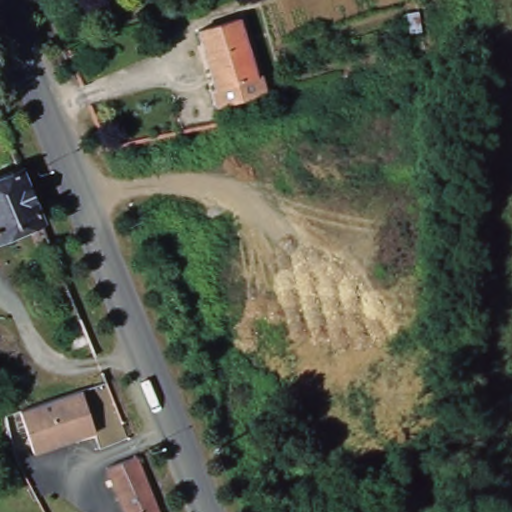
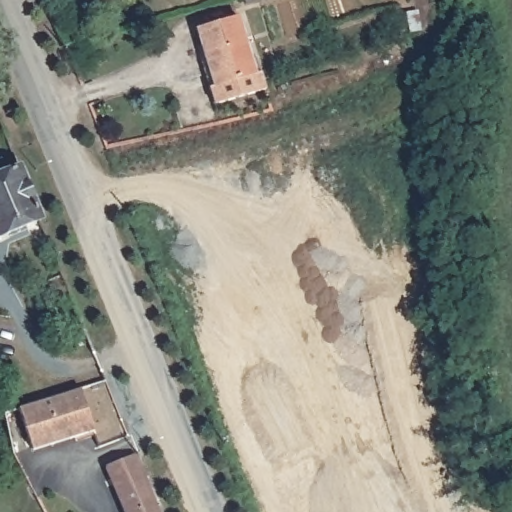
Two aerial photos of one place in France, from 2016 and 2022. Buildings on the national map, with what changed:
unchanged [(244,16),(259,72),(263,71),(270,92),(214,107),(208,87),(216,85),(201,28),(244,16)]
unchanged [(3,158),(15,153),(50,240),(35,246),(25,226),(0,237),(0,172),(6,170),(3,158)]
unchanged [(81,388),(95,432),(32,451),(20,408),(81,388)]
unchanged [(162,512),(127,512),(106,469),(138,454),(162,512)]

